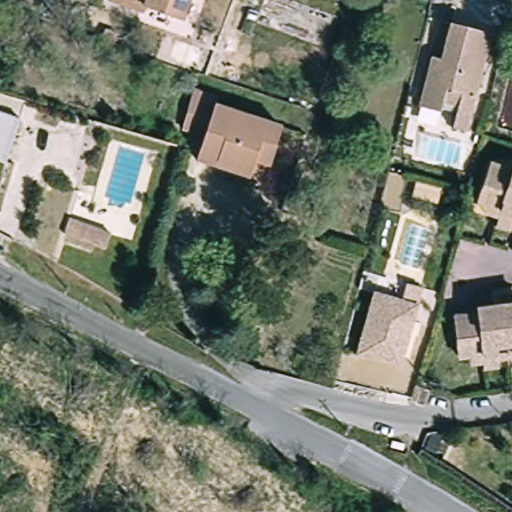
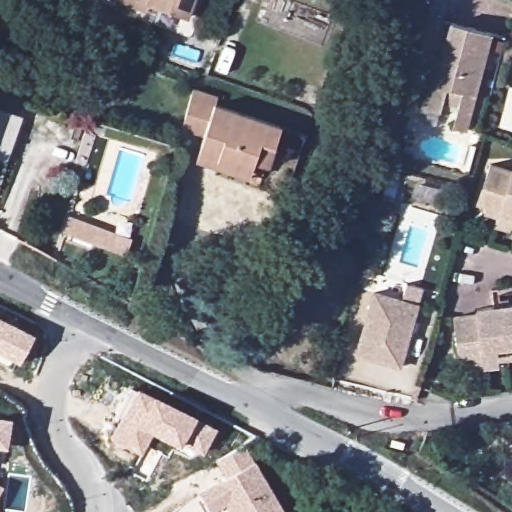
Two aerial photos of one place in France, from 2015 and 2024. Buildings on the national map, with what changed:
unchanged [(108,0),(186,0),(181,18),(143,5),(141,11),(108,0)]
unchanged [(468,130),(455,128),(463,93),(455,91),(447,89),(442,112),(421,107),(429,70),(444,74),(447,62),(443,61),(443,60),(451,24),(470,29),(490,33),(468,130)]
unchanged [(433,58),(443,60),(447,62),(444,74),(429,70),(433,58)]
unchanged [(509,90),(512,82),(512,91),(509,90)]
unchanged [(219,171),(198,163),(205,136),(186,130),(196,90),(219,98),(216,109),(281,132),(273,151),(259,185),(219,171)]
unchanged [(0,155),(0,112),(23,121),(12,160),(0,155)]
unchanged [(491,164),(512,171),(512,223),(499,219),(500,212),(477,205),(491,164)]
unchanged [(74,217),(113,233),(107,249),(68,234),(74,217)]
unchanged [(359,293),(383,299),(404,305),(386,368),(367,362),(341,355),(359,293)]
unchanged [(457,316),(479,313),(479,307),(512,303),(512,358),(485,361),(484,355),(461,357),(457,316)]
new [(15,366),(0,358),(0,321),(31,337),(15,366)]
unchanged [(327,358),(337,361),(334,371),(336,371),(334,384),(322,380),(327,358)]
new [(110,442),(121,420),(115,417),(129,389),(133,391),(134,390),(149,397),(191,419),(215,430),(201,456),(178,445),(176,449),(148,435),(139,457),(110,442)]
new [(4,451),(0,450),(0,418),(7,420),(4,451)]
new [(210,512),(200,495),(226,479),(216,463),(241,448),(253,465),(280,512),(228,512),(223,505),(211,512),(210,512)]

